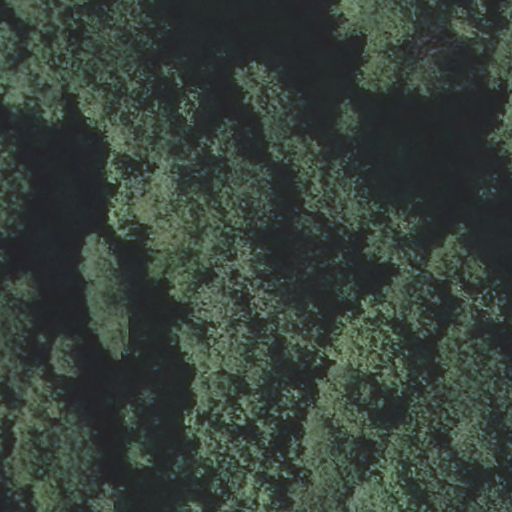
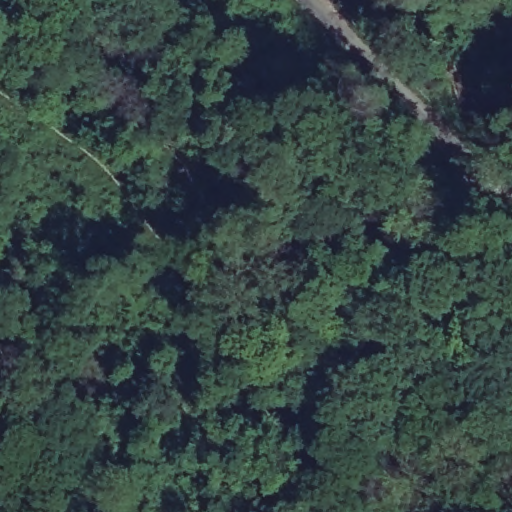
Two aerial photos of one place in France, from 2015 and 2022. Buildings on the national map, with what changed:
[]

